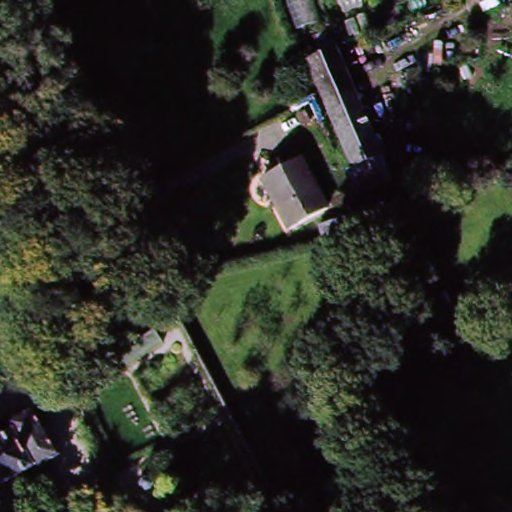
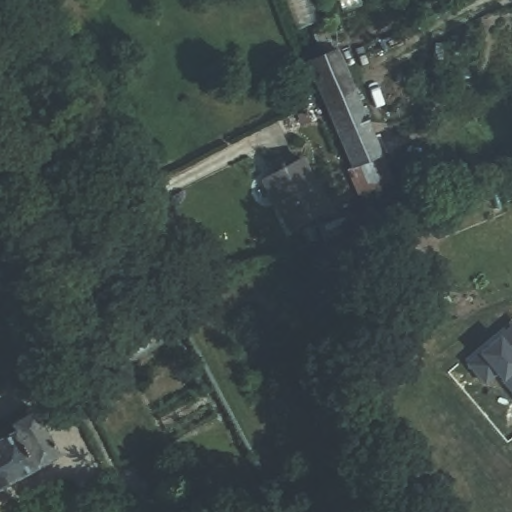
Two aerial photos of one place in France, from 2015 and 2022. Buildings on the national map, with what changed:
unchanged [(393,181),(357,197),(345,170),(350,168),(303,61),(335,46),(382,154),(393,181)]
unchanged [(330,206),(287,230),(259,180),(302,156),(330,206)]
unchanged [(320,238),(318,227),(357,219),(359,230),(320,238)]
new [(512,392),(495,370),(482,380),(465,359),(512,322),(512,392)]
unchanged [(152,330),(160,341),(117,373),(109,361),(152,330)]
unchanged [(0,483),(0,430),(10,424),(8,419),(32,405),(58,450),(0,483)]
demolished [(494,507),(512,501),(512,512),(496,512),(494,507)]

